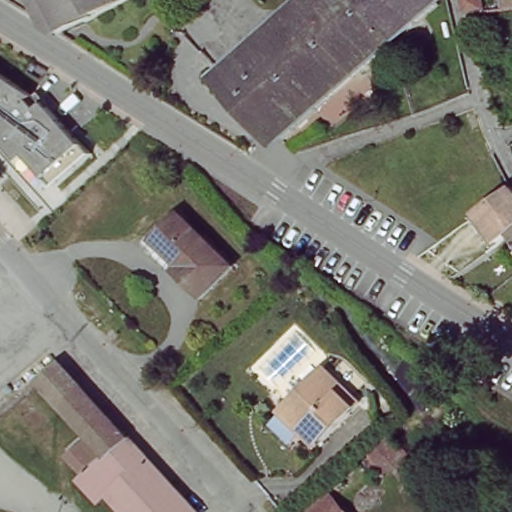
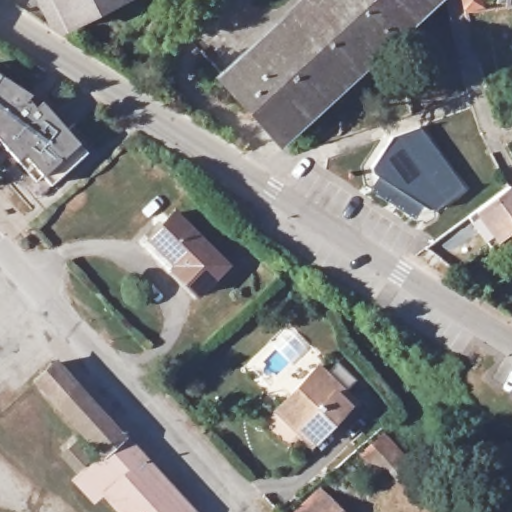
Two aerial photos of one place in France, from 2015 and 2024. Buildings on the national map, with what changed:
unchanged [(56,37),(48,32),(33,0),(132,0),(133,1),(56,37)]
unchanged [(220,77),(306,0),(421,0),(271,131),(220,77)]
unchanged [(464,14),(461,0),(481,0),(484,12),(464,14)]
unchanged [(508,12),(507,0),(512,0),(512,12),(508,12)]
unchanged [(30,100),(39,110),(45,103),(81,144),(89,154),(54,186),(25,156),(19,161),(0,140),(0,74),(34,96),(30,100)]
new [(371,190),(378,179),(373,173),(372,167),(392,137),(420,128),(466,189),(437,210),(429,210),(424,207),(415,220),(371,190)]
unchanged [(473,216),(481,210),(512,188),(512,233),(503,240),(495,246),(473,216)]
unchanged [(225,262),(197,292),(173,267),(177,262),(150,235),(173,212),(225,262)]
unchanged [(102,455),(33,378),(55,361),(122,437),(102,455)]
unchanged [(354,403),(311,446),(276,411),(319,368),(354,403)]
unchanged [(122,437),(123,436),(193,512),(123,512),(106,492),(98,500),(78,477),(85,471),(102,455),(122,437)]
unchanged [(94,453),(79,467),(66,452),(81,438),(94,453)]
unchanged [(339,512),(299,512),(322,492),(339,512)]

